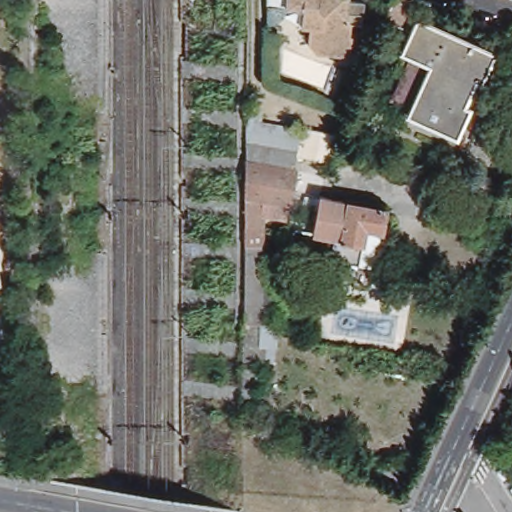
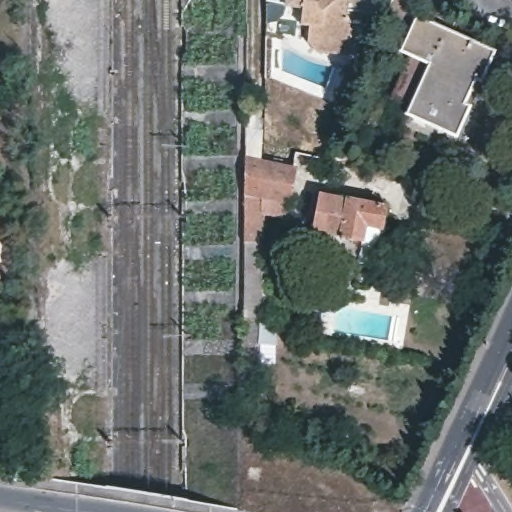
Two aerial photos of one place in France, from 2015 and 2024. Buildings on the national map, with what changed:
unchanged [(315,42),(316,22),(309,22),(309,10),(293,9),(293,0),(356,0),(368,2),(367,26),(356,26),(355,36),(357,36),(355,56),(335,54),(325,54),(315,42)]
unchanged [(457,139),(407,116),(409,109),(429,66),(409,57),(400,52),(410,31),(386,21),(394,0),(424,0),(415,19),(494,55),(481,82),(470,108),(457,139)]
unchanged [(388,99),(409,57),(429,66),(409,109),(388,99)]
unchanged [(293,182),(296,183),(286,234),(263,231),(264,277),(261,277),(245,277),(245,269),(246,156),(246,125),(261,128),(260,135),(301,143),(293,182)]
unchanged [(384,209),(381,230),(379,229),(376,242),(373,245),(369,267),(313,257),(318,235),(312,234),(319,197),(384,209)]
unchanged [(278,362),(261,361),(259,429),(256,427),(242,420),(243,411),(245,386),(245,287),(261,287),(261,298),(277,298),(278,362)]

